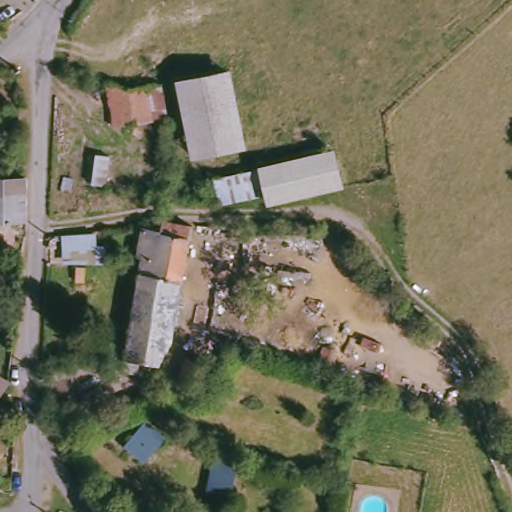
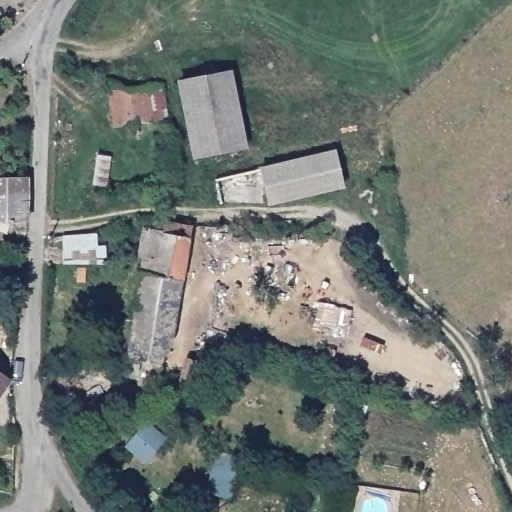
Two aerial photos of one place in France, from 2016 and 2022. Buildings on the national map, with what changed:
unchanged [(182,84),(232,75),(246,148),(195,157),(182,84)]
unchanged [(127,90),(163,85),(168,120),(117,127),(110,85),(127,90)]
unchanged [(259,193),(255,171),(326,155),(335,187),(262,204),(259,193)]
unchanged [(118,187),(95,185),(97,156),(120,158),(118,187)]
unchanged [(0,221),(0,171),(26,167),(27,200),(21,200),(21,208),(3,207),(3,221),(0,221)]
unchanged [(259,193),(213,201),(209,179),(255,171),(259,193)]
unchanged [(20,219),(21,208),(27,209),(27,219),(20,219)]
unchanged [(158,230),(160,222),(190,227),(169,343),(158,364),(137,360),(133,375),(120,372),(138,258),(135,257),(139,227),(158,230)]
unchanged [(105,263),(73,263),(73,249),(105,249),(105,263)]
unchanged [(320,366),(325,345),(337,348),(332,369),(320,366)]
unchanged [(113,363),(88,356),(90,348),(115,353),(113,363)]
unchanged [(178,389),(188,360),(211,368),(201,397),(178,389)]
unchanged [(10,373),(0,388),(0,367),(10,373)]
unchanged [(148,418),(172,441),(150,469),(125,442),(148,418)]
unchanged [(232,498),(210,493),(220,454),(240,458),(232,498)]

